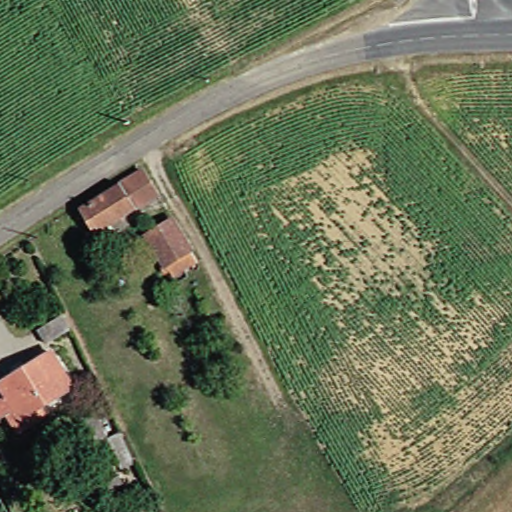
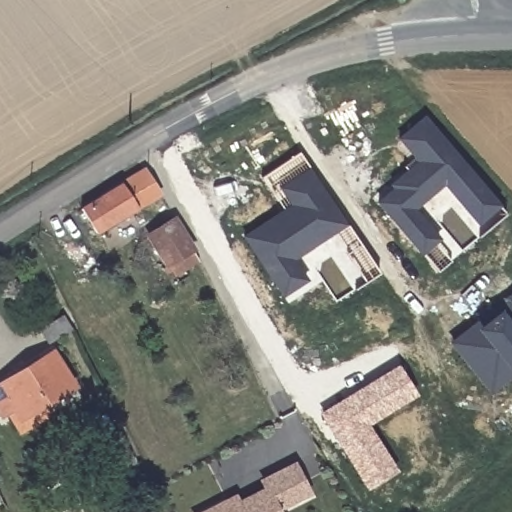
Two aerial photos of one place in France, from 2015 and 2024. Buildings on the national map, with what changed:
new [(476,225),(443,184),(416,209),(440,239),(420,255),(376,201),(392,188),(388,183),(415,161),(397,138),(425,115),(500,206),(476,225)]
new [(355,290),(322,241),(296,258),(308,281),(282,297),(242,235),(282,210),(261,177),(299,152),(378,272),(355,290)]
unchanged [(160,194),(99,231),(84,206),(144,168),(160,194)]
unchanged [(144,230),(171,215),(193,257),(166,272),(144,230)]
new [(488,395),(448,343),(512,291),(512,376),(488,395)]
unchanged [(66,320),(44,334),(35,321),(58,307),(66,320)]
unchanged [(40,407),(45,416),(20,432),(9,415),(2,419),(0,415),(0,383),(52,352),(72,386),(40,407)]
new [(417,397),(368,426),(397,472),(366,491),(320,412),(397,365),(417,397)]
demolished [(252,397),(244,384),(268,371),(275,385),(252,397)]
unchanged [(97,408),(107,432),(92,438),(82,415),(97,408)]
unchanged [(122,427),(135,458),(124,463),(110,432),(122,427)]
new [(280,511),(281,512),(200,512),(236,493),(240,499),(262,488),(259,481),(296,461),(312,495),(280,511)]
unchanged [(130,477),(107,489),(102,479),(125,467),(130,477)]

